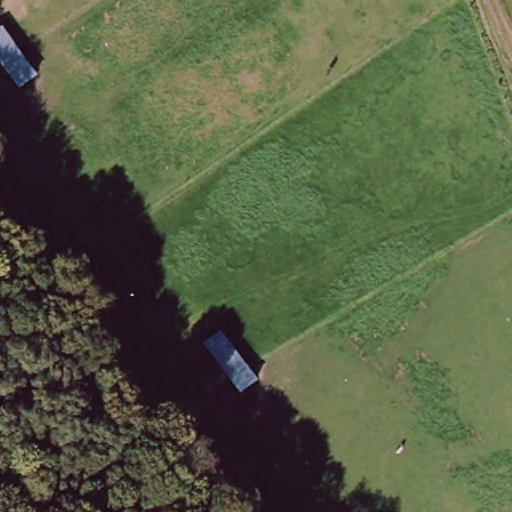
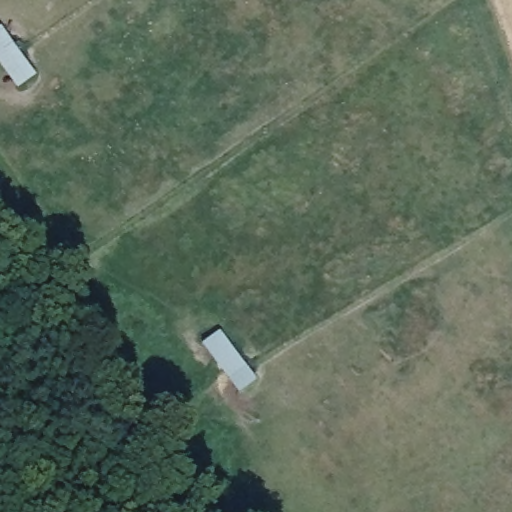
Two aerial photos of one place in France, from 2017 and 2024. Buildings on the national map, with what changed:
unchanged [(12,96),(0,77),(0,32),(2,31),(37,80),(12,96)]
unchanged [(198,352),(220,337),(248,372),(227,386),(198,352)]

